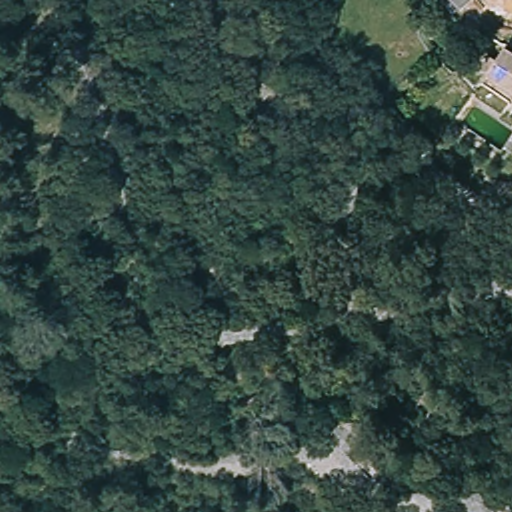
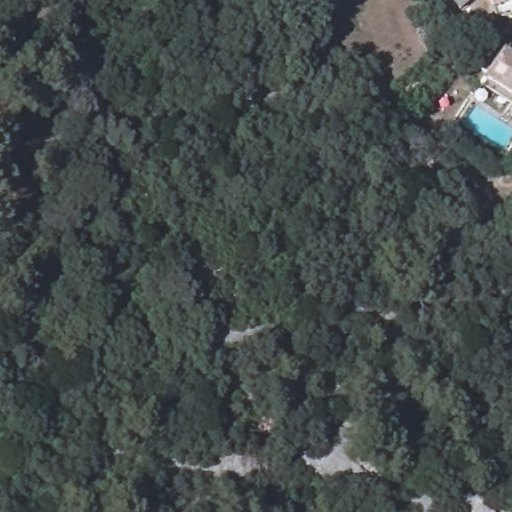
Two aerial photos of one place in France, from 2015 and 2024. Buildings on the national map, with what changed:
unchanged [(466,11),(457,0),(477,0),(478,1),(466,11)]
unchanged [(512,0),(495,6),(493,0),(512,0)]
unchanged [(512,96),(486,80),(505,51),(512,55),(512,96)]

